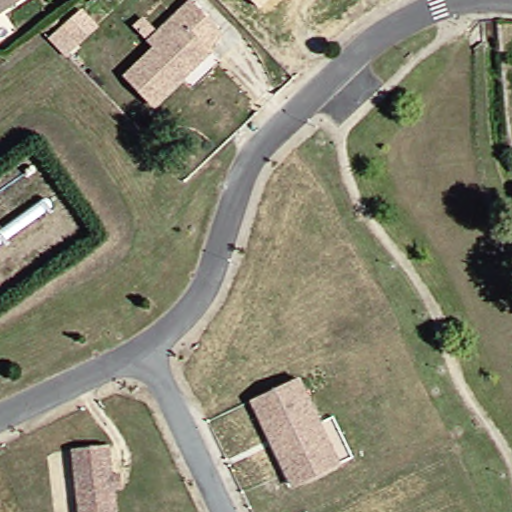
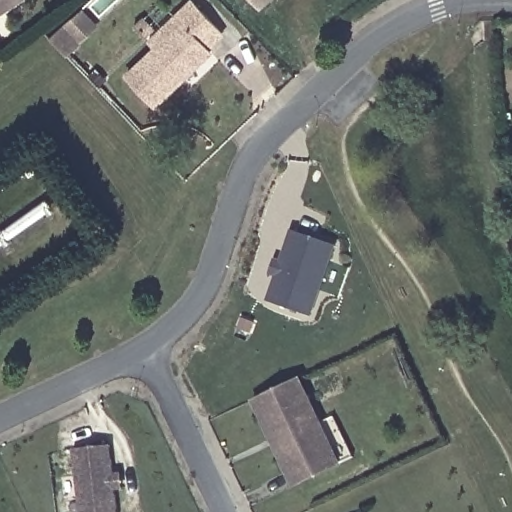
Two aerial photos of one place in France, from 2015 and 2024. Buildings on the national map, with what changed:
unchanged [(0,8),(0,0),(12,0),(0,8)]
unchanged [(226,28),(210,43),(213,46),(155,99),(132,67),(159,43),(152,36),(180,9),(191,0),(200,0),(226,28)]
unchanged [(248,0),(269,0),(257,11),(248,0)]
unchanged [(50,40),(62,29),(76,44),(64,55),(50,40)]
new [(267,300),(290,231),(334,246),(311,315),(267,300)]
unchanged [(336,469),(290,489),(251,404),(299,382),(336,469)]
unchanged [(110,447),(112,460),(106,468),(106,509),(105,512),(80,512),(73,451),(110,447)]

